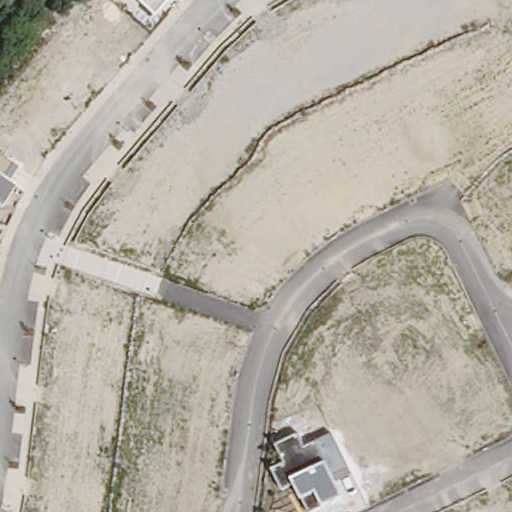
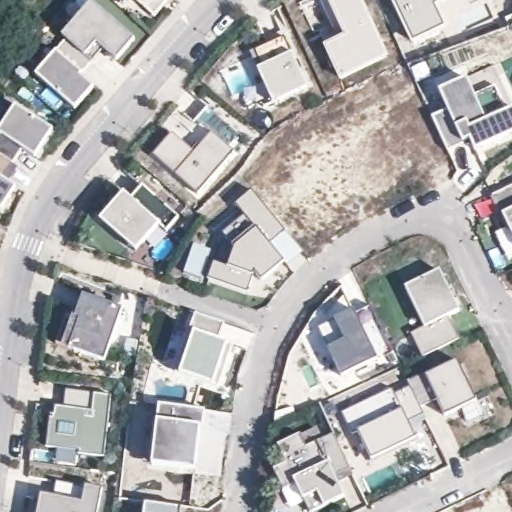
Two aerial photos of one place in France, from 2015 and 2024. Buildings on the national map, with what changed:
unchanged [(153,16),(135,0),(169,0),(153,16)]
new [(335,82),(317,45),(338,35),(322,0),(365,0),(391,54),(386,57),(340,77),(335,82)]
new [(436,7),(447,28),(412,45),(390,0),(450,0),(436,7)]
new [(92,3),(133,39),(115,60),(102,49),(91,62),(67,41),(62,37),(92,3)]
new [(250,58),(247,53),(282,36),(306,86),(262,107),(240,62),(250,58)]
new [(67,41),(91,62),(80,75),(93,87),(74,108),(36,75),(67,41)]
new [(447,107),(439,90),(466,78),(473,94),(495,86),(507,111),(512,109),(512,135),(477,151),(470,138),(462,142),(448,151),(432,116),(447,107)]
new [(52,131),(35,156),(20,147),(10,163),(0,156),(0,128),(14,106),(52,131)]
new [(172,132),(195,152),(211,133),(200,124),(192,134),(171,116),(177,108),(193,122),(207,107),(228,124),(217,137),(234,152),(197,194),(152,154),(172,132)]
unchanged [(8,183),(15,188),(0,210),(0,156),(17,167),(8,183)]
new [(125,194),(130,198),(142,185),(182,220),(170,234),(162,227),(139,254),(102,221),(125,194)]
new [(508,227),(506,228),(492,198),(493,197),(512,188),(512,235),(508,227)]
new [(213,262),(227,267),(234,248),(222,234),(243,215),(235,205),(252,191),(286,232),(270,245),(285,263),(262,281),(254,272),(247,293),(207,279),(213,262)]
unchanged [(439,271),(459,311),(448,317),(458,339),(423,356),(411,333),(425,326),(405,287),(439,271)]
new [(66,313),(80,318),(87,296),(123,309),(117,327),(59,335),(66,313)]
new [(353,310),(355,312),(370,305),(393,351),(342,376),(318,327),(353,310)]
new [(190,330),(195,314),(224,324),(219,341),(225,343),(231,345),(232,347),(218,388),(212,386),(178,374),(193,332),(190,330)]
new [(59,335),(117,327),(105,361),(55,344),(59,335)]
new [(424,373),(425,376),(457,360),(477,401),(445,417),(437,400),(420,408),(410,386),(408,381),(424,373)]
new [(392,388),(395,394),(410,386),(420,408),(424,414),(409,422),(417,438),(372,460),(358,432),(352,435),(342,413),(392,388)]
new [(47,414),(52,415),(53,405),(63,406),(65,389),(109,394),(102,457),(76,454),(76,452),(43,448),(47,414)]
new [(202,410),(200,428),(195,467),(153,463),(158,422),(160,405),(202,410)]
unchanged [(342,497),(325,506),(313,512),(311,512),(303,499),(297,485),(283,490),(273,470),(286,464),(278,446),(299,436),(307,449),(335,435),(355,476),(337,482),(342,497)]
new [(85,486),(102,489),(97,512),(37,512),(40,494),(82,502),(85,486)]
new [(179,507),(178,512),(142,512),(143,503),(179,507)]

